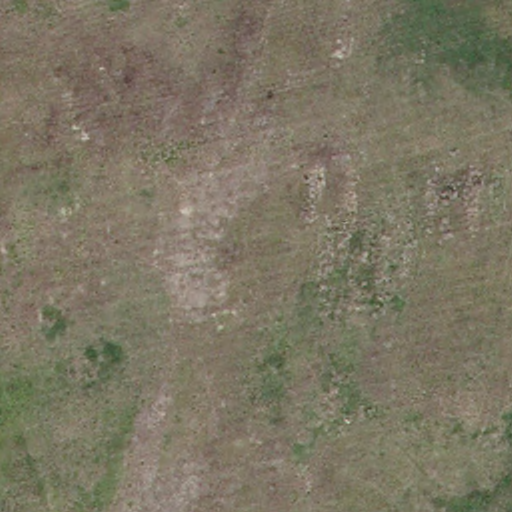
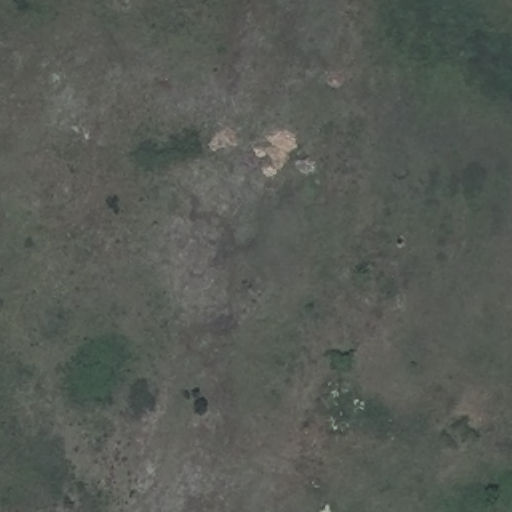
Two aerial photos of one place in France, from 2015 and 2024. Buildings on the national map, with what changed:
[]

